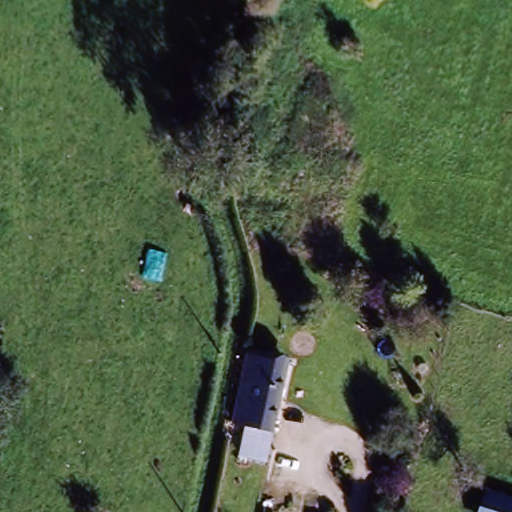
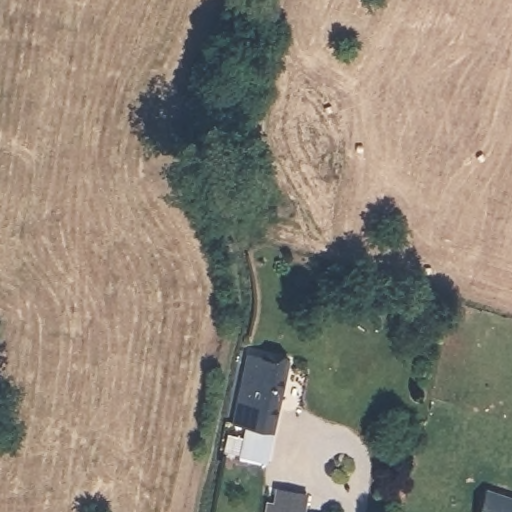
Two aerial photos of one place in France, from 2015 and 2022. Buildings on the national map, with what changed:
unchanged [(248,348),(287,359),(279,396),(286,398),(283,411),(276,410),(266,457),(241,452),(246,420),(233,420),(248,348)]
demolished [(271,483),(304,490),(298,512),(265,512),(271,483)]
new [(304,490),(302,512),(273,512),(276,487),(304,490)]
unchanged [(488,490),(512,498),(512,512),(479,512),(488,490)]
new [(274,501),(273,512),(265,512),(266,500),(274,501)]

